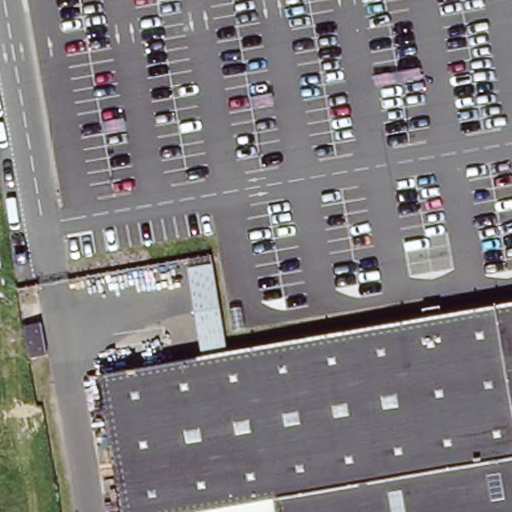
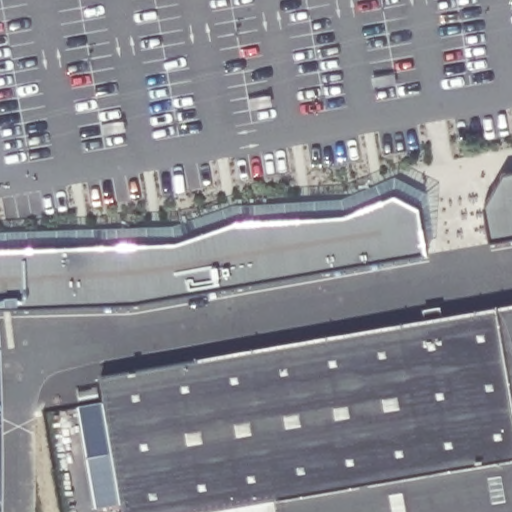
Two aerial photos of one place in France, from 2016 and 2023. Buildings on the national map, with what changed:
new [(512,172),(512,239),(485,244),(479,208),(499,174),(512,172)]
new [(118,306),(0,310),(0,250),(169,244),(230,222),(341,215),(388,196),(413,209),(420,255),(118,306)]
unchanged [(221,510),(208,512),(125,512),(101,375),(203,358),(229,353),(512,306),(512,512),(221,512),(221,510)]
new [(123,503),(97,507),(80,405),(106,400),(123,503)]
unchanged [(221,510),(221,512),(208,512),(221,510)]

